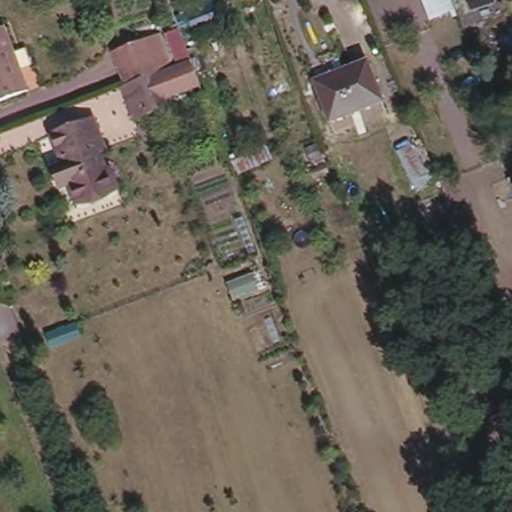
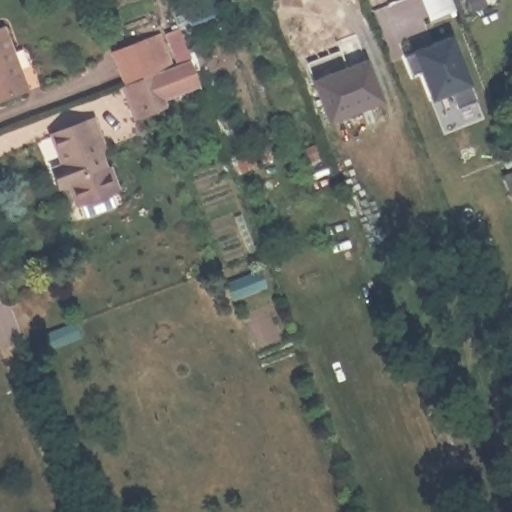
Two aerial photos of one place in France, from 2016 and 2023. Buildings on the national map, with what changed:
unchanged [(185,14),(212,3),(220,22),(192,33),(185,14)]
unchanged [(0,101),(0,29),(5,27),(29,90),(0,101)]
unchanged [(167,69),(191,61),(197,85),(173,93),(175,96),(135,110),(111,50),(156,36),(167,69)]
new [(470,84),(476,99),(458,106),(451,94),(431,101),(411,53),(451,37),(470,84)]
unchanged [(319,78),(372,57),(388,96),(335,117),(319,78)]
unchanged [(70,186),(61,190),(53,171),(64,167),(48,130),(89,114),(118,189),(77,204),(70,186)]
unchanged [(273,159),(236,173),(231,159),(268,145),(273,159)]
unchanged [(414,183),(398,153),(410,146),(426,176),(414,183)]

